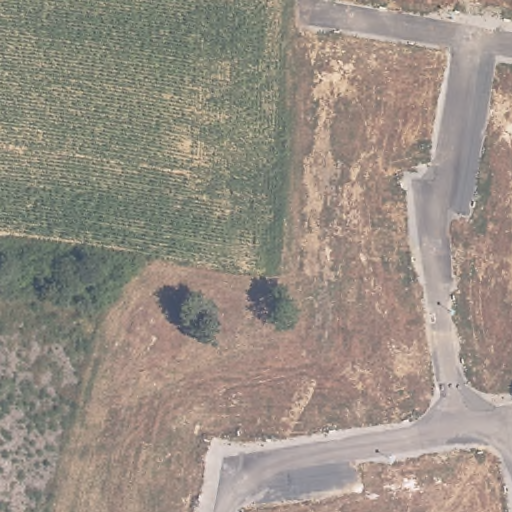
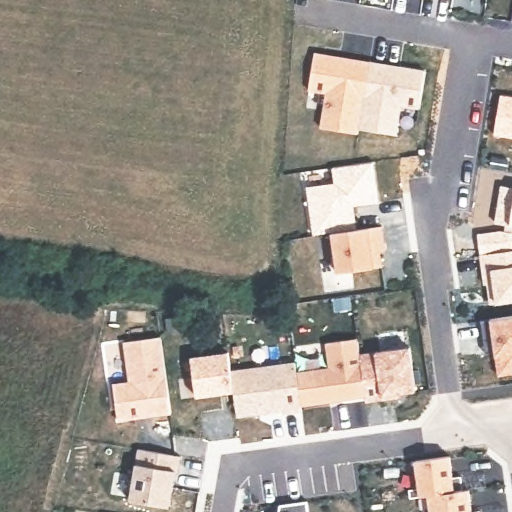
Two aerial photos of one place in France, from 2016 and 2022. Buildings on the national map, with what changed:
new [(326,95),(308,91),(314,51),(425,70),(420,110),(403,107),(400,136),(360,129),(360,135),(320,129),(326,95)]
new [(512,95),(512,135),(496,132),(502,93),(512,95)]
new [(338,187),(337,170),(377,165),(382,205),(357,209),(360,233),(335,236),(317,239),(311,190),(338,187)]
new [(504,229),(505,225),(495,223),(500,186),(512,188),(512,248),(482,253),(477,232),(504,229)]
new [(386,229),(388,246),(389,254),(383,254),(386,269),(340,276),(335,236),(360,233),(386,229)]
new [(512,299),(492,302),(488,282),(486,282),(482,253),(512,248),(512,299)]
new [(494,321),(512,319),(512,376),(511,377),(508,353),(498,355),(497,348),(494,321)]
new [(119,420),(114,383),(130,380),(124,341),(161,335),(172,412),(155,415),(141,417),(119,420)]
new [(297,371),(306,370),(330,366),(327,341),(358,337),(361,353),(366,396),(310,403),(302,404),(302,409),(286,412),(285,409),(238,416),(234,391),(231,370),(296,361),(297,371)]
new [(411,346),(417,390),(401,392),(401,396),(367,401),(366,396),(361,353),(411,346)]
new [(229,351),(231,370),(234,391),(197,396),(192,356),(229,351)]
unchanged [(169,503),(129,497),(134,464),(136,448),(182,456),(179,470),(175,471),(169,503)]
new [(450,455),(455,491),(469,489),(472,512),(432,512),(430,494),(422,495),(417,459),(450,455)]
new [(281,504),(308,500),(310,512),(279,512),(281,504)]

